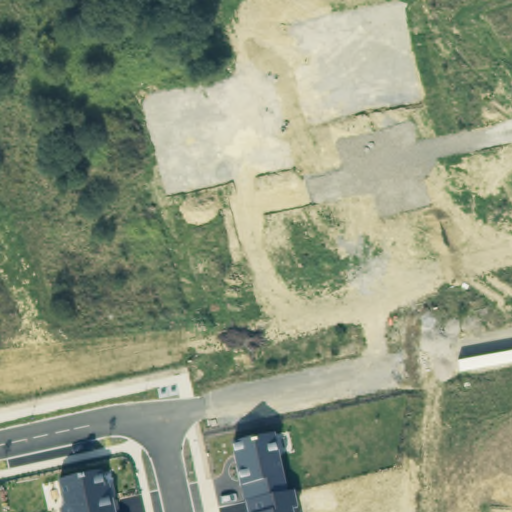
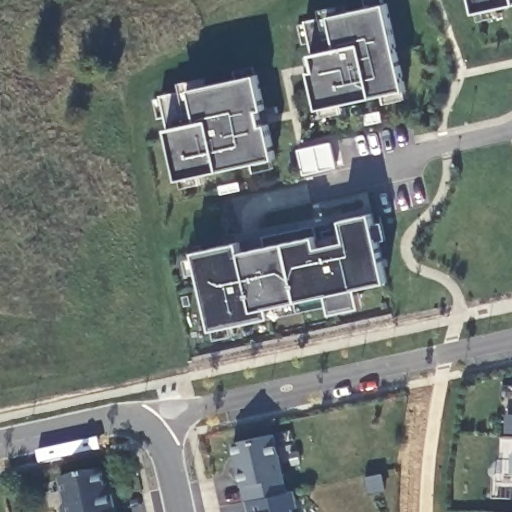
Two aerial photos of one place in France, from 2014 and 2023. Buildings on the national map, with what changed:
new [(512,4),(476,12),(473,0),(512,0),(512,4)]
new [(373,97),(320,108),(311,73),(317,71),(313,54),(317,53),(306,21),(323,20),(321,9),(349,2),(353,10),(386,4),(405,90),(373,97)]
new [(265,109),(259,110),(263,125),(268,125),(276,159),(221,170),(179,179),(168,128),(172,127),(161,96),(183,94),(181,82),(209,76),(212,84),(257,75),(265,109)]
new [(331,143),(336,167),(304,174),(298,150),(331,143)]
new [(241,252),(316,236),(318,247),(347,241),(343,220),(372,214),(386,281),(358,288),(362,307),(333,313),(331,305),(271,317),(212,330),(195,252),(240,243),(241,252)]
unchanged [(295,490),(300,507),(294,509),(295,512),(249,512),(233,445),(276,433),(289,491),(295,490)]
unchanged [(511,453),(512,453),(512,474),(510,474),(511,453)]
unchanged [(66,503),(61,481),(104,471),(107,488),(114,487),(119,512),(62,512),(61,509),(66,503)]

